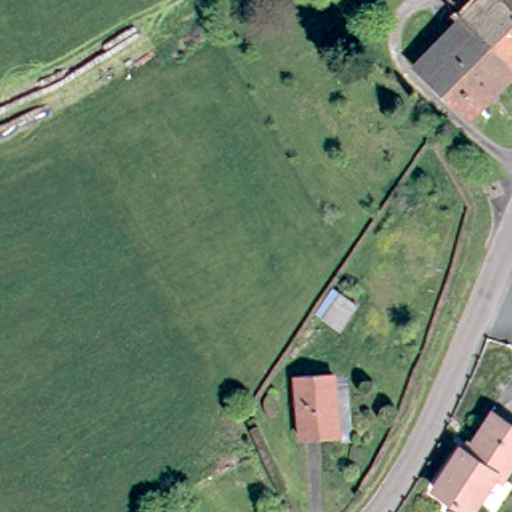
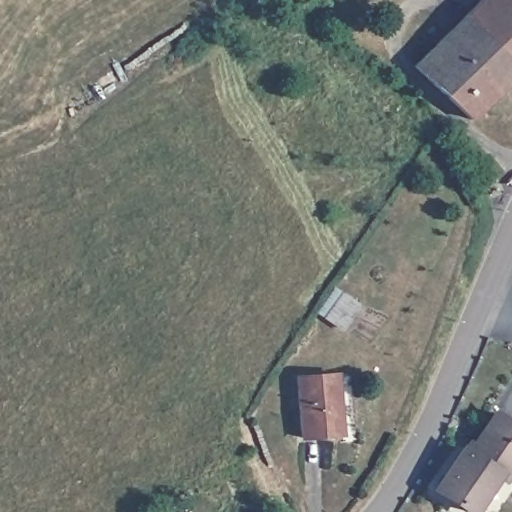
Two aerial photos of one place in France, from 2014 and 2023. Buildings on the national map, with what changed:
unchanged [(465,15),(479,0),(509,0),(512,3),(512,65),(465,15)]
unchanged [(509,0),(512,0),(512,3),(509,0)]
unchanged [(512,65),(512,78),(471,120),(413,66),(465,15),(512,65)]
unchanged [(316,312),(333,287),(341,291),(358,302),(341,328),(323,317),(316,312)]
unchanged [(306,437),(301,377),(340,373),(345,435),(306,437)]
unchanged [(472,512),(435,489),(462,448),(469,452),(495,412),(512,424),(512,465),(503,478),(496,473),(472,512)]

